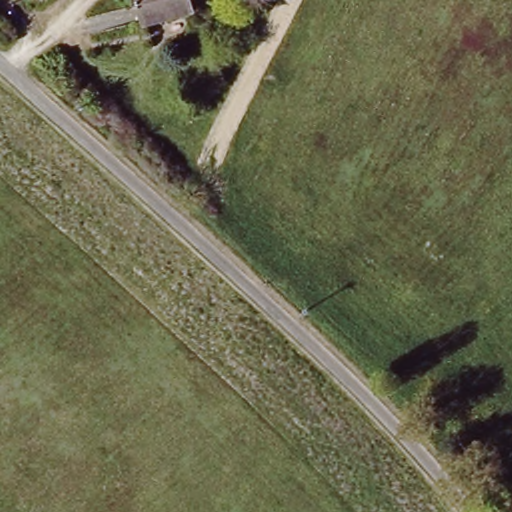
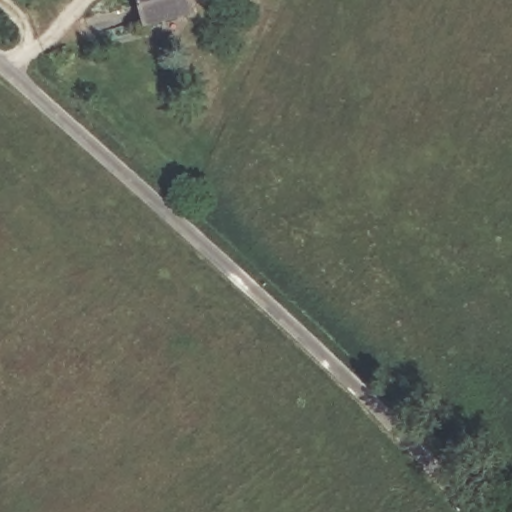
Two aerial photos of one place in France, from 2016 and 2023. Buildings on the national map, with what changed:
unchanged [(141,25),(133,0),(187,0),(191,14),(141,25)]

